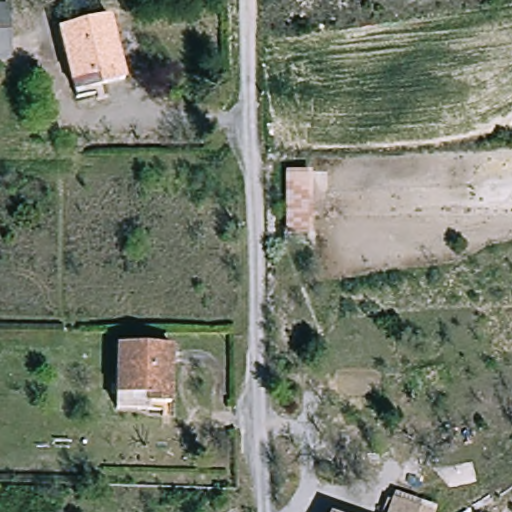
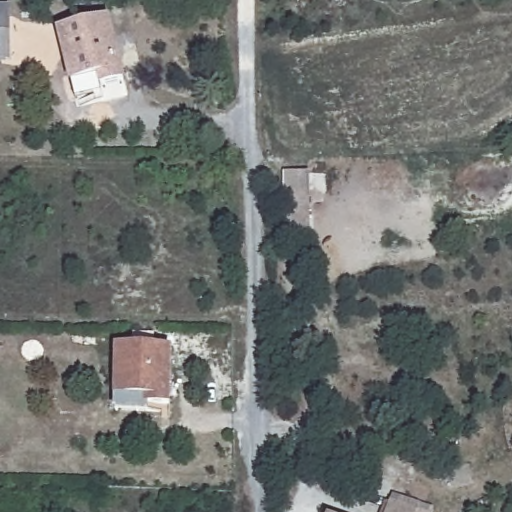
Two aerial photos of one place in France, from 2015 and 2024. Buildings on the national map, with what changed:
unchanged [(7,62),(0,62),(0,10),(8,10),(7,62)]
unchanged [(107,21),(123,82),(71,95),(57,34),(107,21)]
unchanged [(306,174),(309,235),(288,236),(286,175),(306,174)]
unchanged [(169,352),(168,407),(144,406),(144,413),(113,412),(115,350),(169,352)]
unchanged [(392,502),(417,512),(388,512),(392,502)]

